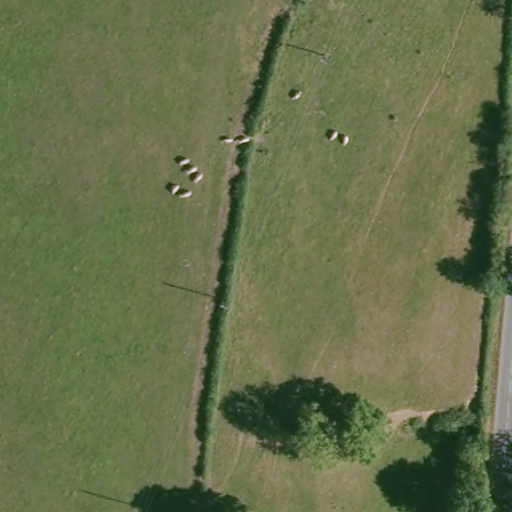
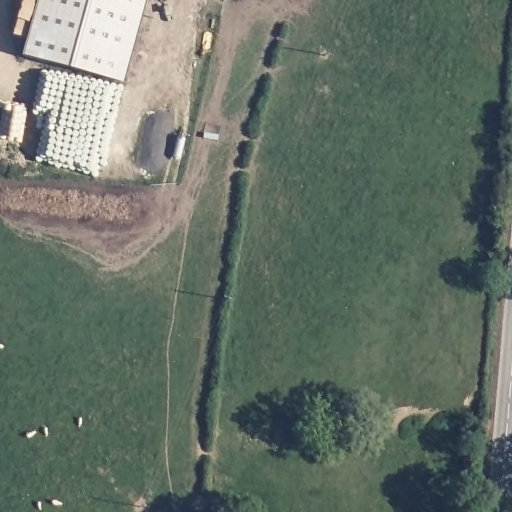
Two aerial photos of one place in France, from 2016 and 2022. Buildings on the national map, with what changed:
new [(23,55),(38,0),(145,0),(122,83),(23,55)]

